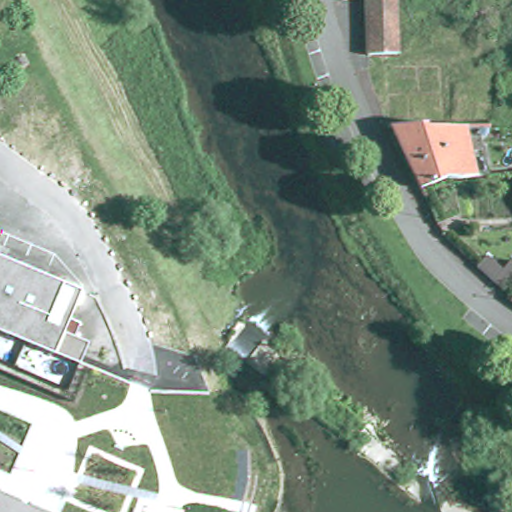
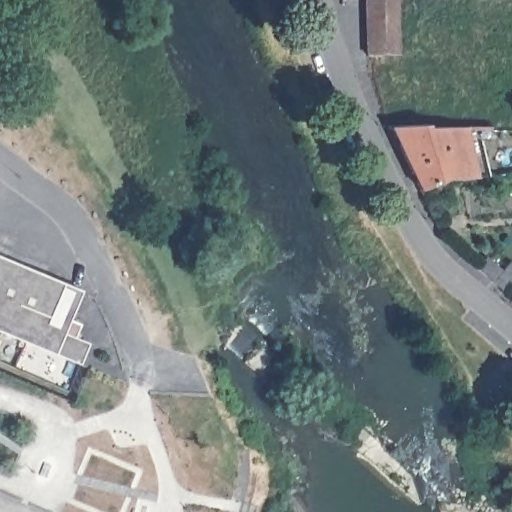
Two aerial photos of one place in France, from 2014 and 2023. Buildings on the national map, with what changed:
unchanged [(365,25),(364,10),(364,0),(396,0),(396,7),(397,24),(397,37),(397,52),(366,54),(365,40),(365,25)]
unchanged [(493,172),(445,176),(425,189),(397,127),(483,126),(493,172)]
unchanged [(502,268),(492,279),(477,265),(487,254),(502,268)]
unchanged [(0,330),(0,256),(82,291),(70,318),(82,323),(75,340),(88,346),(82,361),(80,364),(55,353),(0,330)]
unchanged [(512,280),(504,289),(493,280),(511,260),(512,261),(512,280)]

